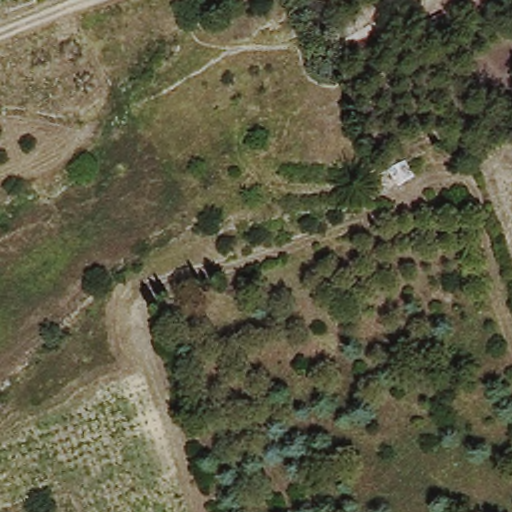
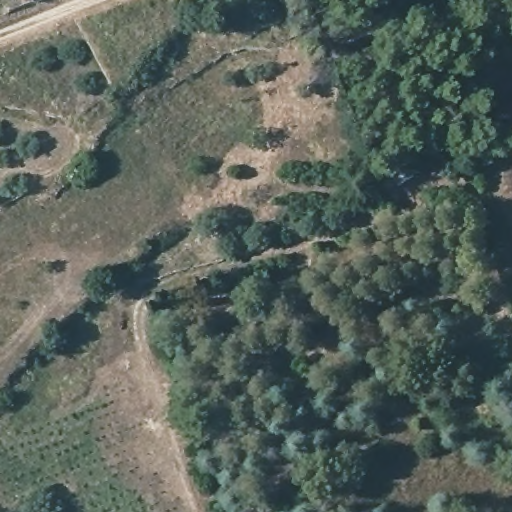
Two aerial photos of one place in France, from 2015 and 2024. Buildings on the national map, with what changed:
unchanged [(394,187),(382,169),(405,157),(416,180),(394,187)]

